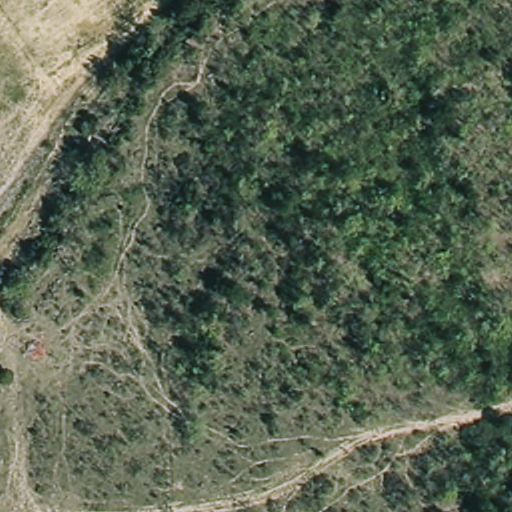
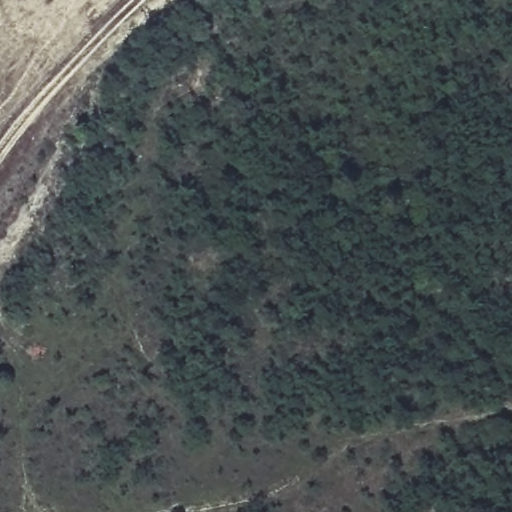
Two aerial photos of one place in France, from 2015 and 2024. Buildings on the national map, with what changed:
[]

